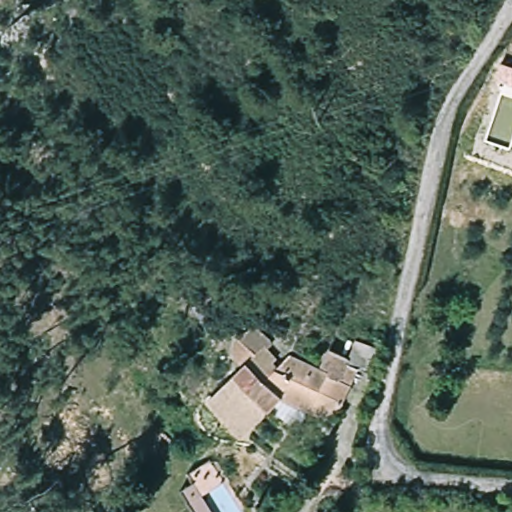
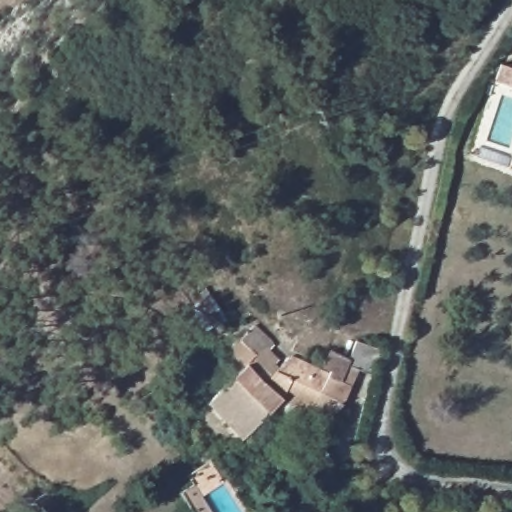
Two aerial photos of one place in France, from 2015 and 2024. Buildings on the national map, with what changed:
unchanged [(225,320),(205,328),(204,328),(193,305),(211,295),(219,309),(225,320)]
unchanged [(254,357),(267,370),(263,375),(270,379),(281,366),(328,395),(347,358),(370,365),(361,388),(347,384),(341,398),(336,413),(332,421),(327,426),(322,428),(316,428),(310,427),(302,425),(277,411),(259,427),(224,388),(254,357)]
unchanged [(188,472),(213,458),(227,482),(202,495),(188,472)]

